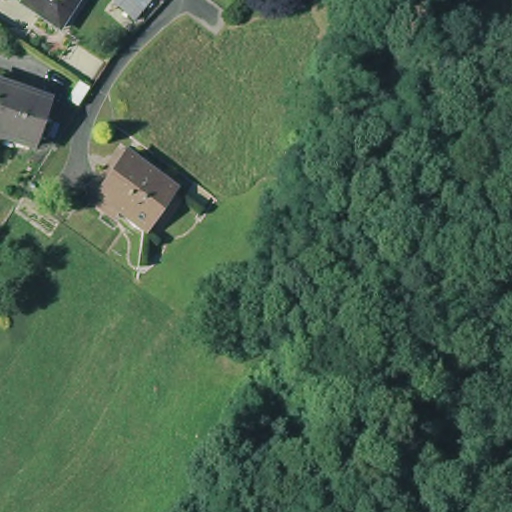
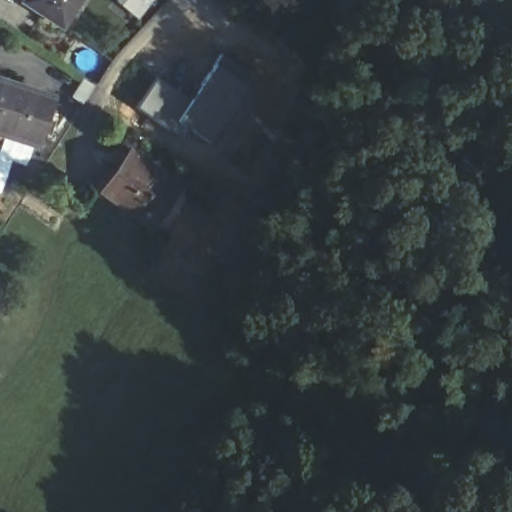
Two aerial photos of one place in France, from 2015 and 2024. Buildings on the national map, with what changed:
unchanged [(30,0),(76,0),(63,20),(30,0)]
unchanged [(37,153),(0,141),(0,89),(51,106),(37,153)]
unchanged [(134,218),(127,210),(120,205),(116,212),(85,190),(90,183),(91,184),(102,168),(101,168),(119,142),(126,147),(177,182),(186,189),(191,182),(196,176),(214,188),(210,195),(204,203),(187,191),(157,232),(146,225),(134,218)]

